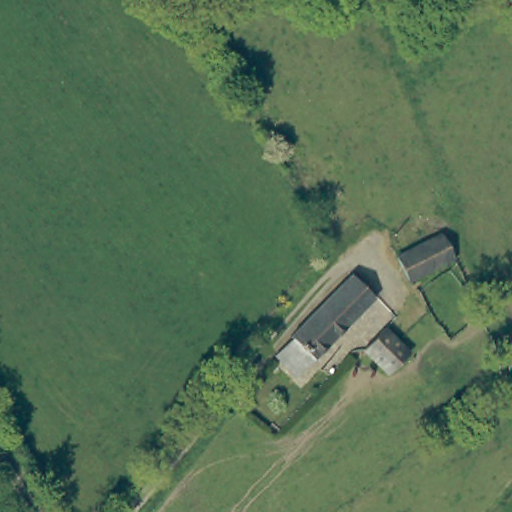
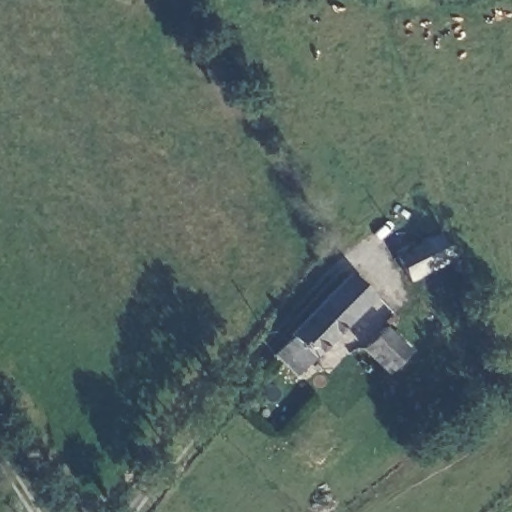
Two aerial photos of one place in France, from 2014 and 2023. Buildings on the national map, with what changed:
unchanged [(410,281),(397,256),(442,234),(455,259),(410,281)]
unchanged [(297,376),(275,354),(292,337),(351,274),(375,298),(297,376)]
unchanged [(375,360),(364,349),(385,327),(410,352),(389,374),(375,360)]
unchanged [(247,399),(257,405),(250,413),(241,406),(247,399)]

